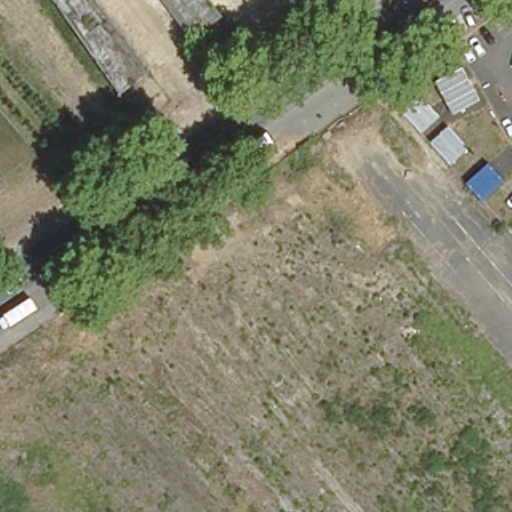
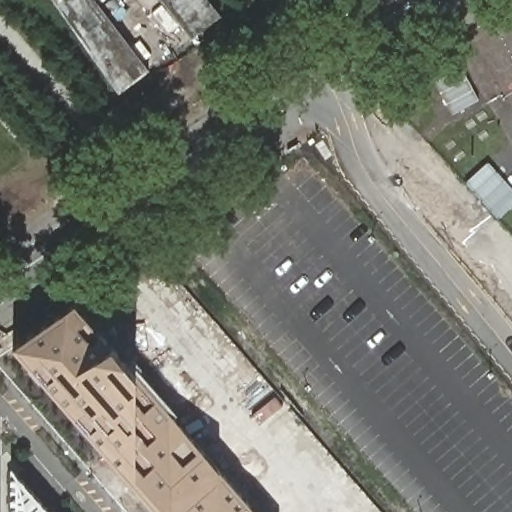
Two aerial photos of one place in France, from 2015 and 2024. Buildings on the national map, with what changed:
unchanged [(56,12),(47,0),(90,0),(141,71),(113,93),(89,59),(65,26),(56,12)]
unchanged [(220,15),(193,35),(188,39),(158,0),(207,0),(220,15)]
unchanged [(451,112),(434,80),(462,65),(481,100),(451,112)]
new [(466,183),(488,162),(512,188),(512,206),(499,218),(466,183)]
new [(74,302),(113,344),(124,359),(136,374),(218,469),(256,512),(159,512),(14,347),(74,302)]
new [(50,512),(11,512),(11,466),(50,512)]

